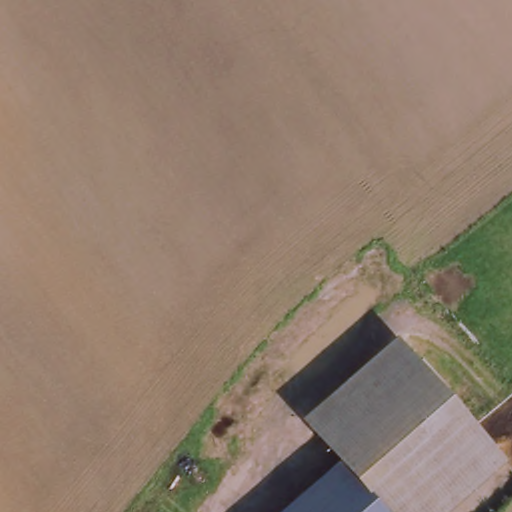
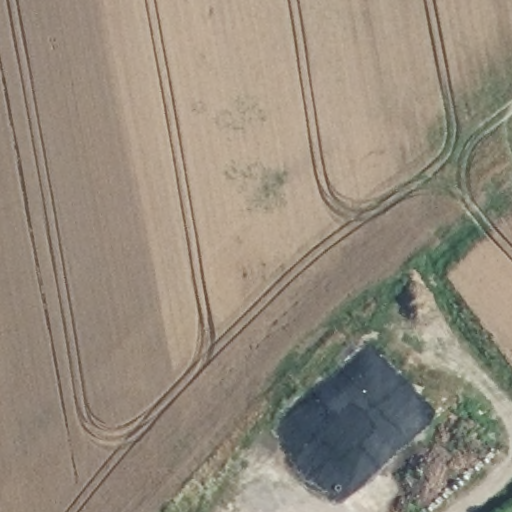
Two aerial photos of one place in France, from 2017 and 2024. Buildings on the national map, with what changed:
demolished [(459,512),(291,512),(338,470),(306,427),(401,343),(506,471),(459,512)]

